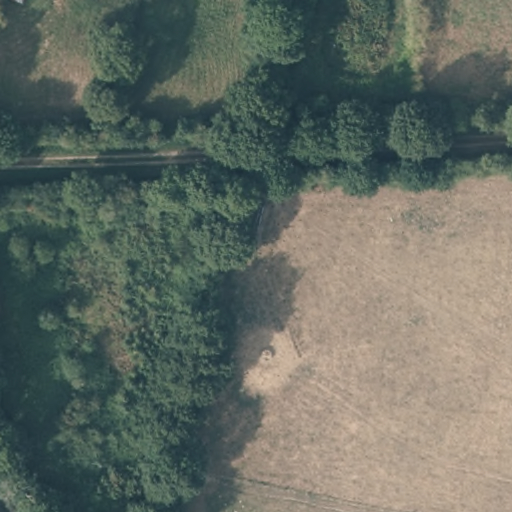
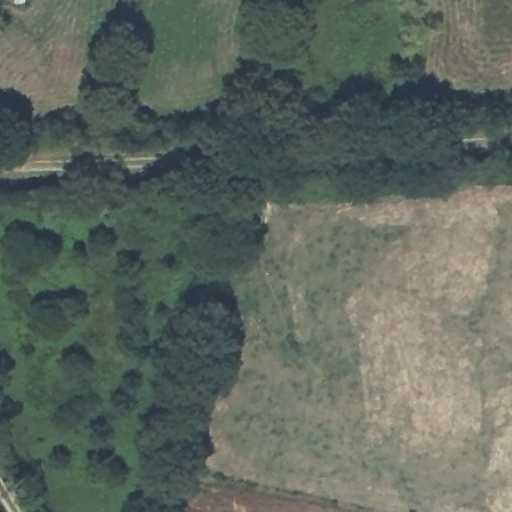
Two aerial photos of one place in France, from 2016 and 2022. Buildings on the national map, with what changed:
unchanged [(25,1),(22,0),(26,0),(25,1)]

